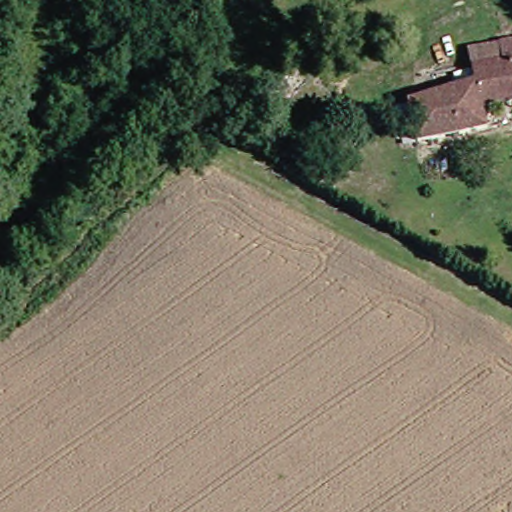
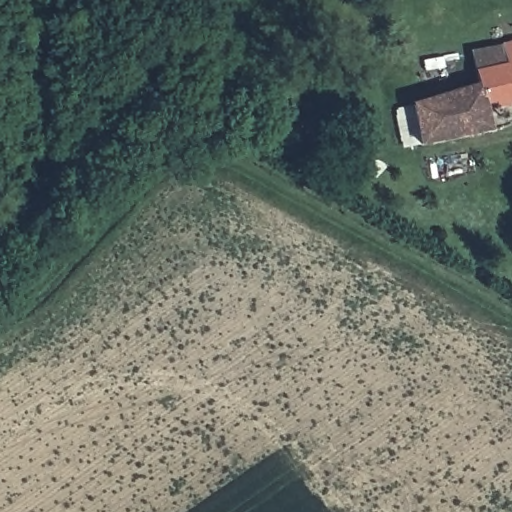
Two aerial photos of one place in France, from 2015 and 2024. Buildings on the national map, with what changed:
unchanged [(512,43),(512,103),(482,110),(486,127),(418,146),(407,101),(475,85),(467,54),(512,43)]
unchanged [(324,162),(317,135),(337,130),(343,158),(324,162)]

